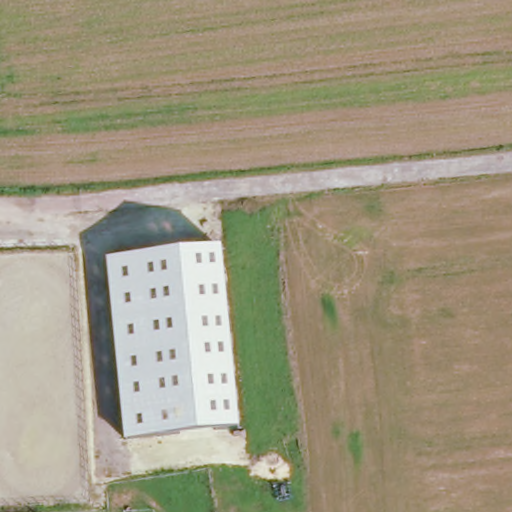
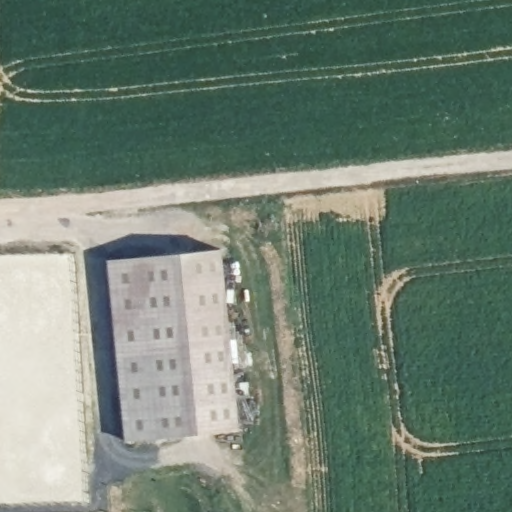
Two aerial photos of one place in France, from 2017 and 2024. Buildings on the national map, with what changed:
unchanged [(125,442),(107,261),(222,248),(241,430),(125,442)]

